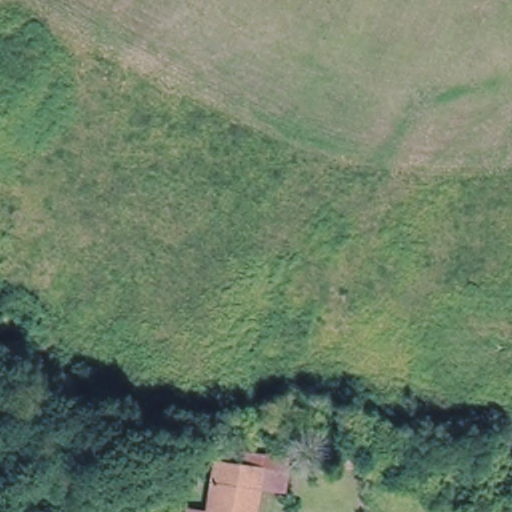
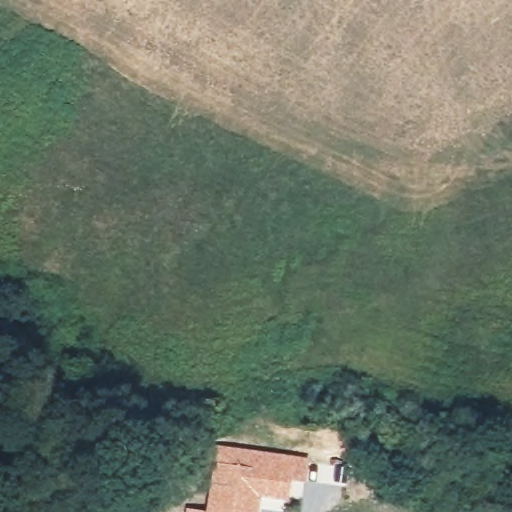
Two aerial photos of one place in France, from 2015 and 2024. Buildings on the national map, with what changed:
unchanged [(283,489),(257,486),(261,466),(216,460),(217,446),(287,455),(283,489)]
unchanged [(257,486),(253,512),(186,512),(187,506),(209,510),(216,460),(261,466),(257,486)]

